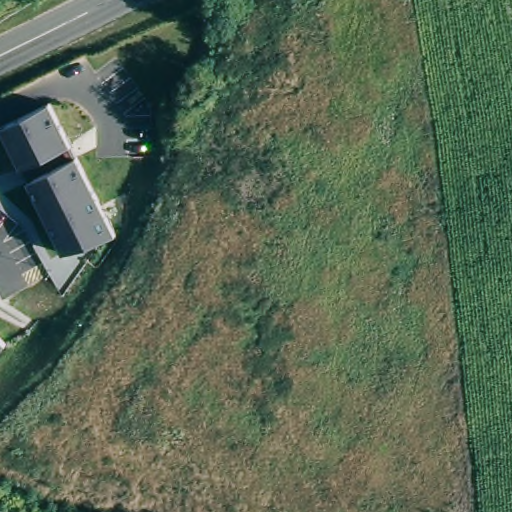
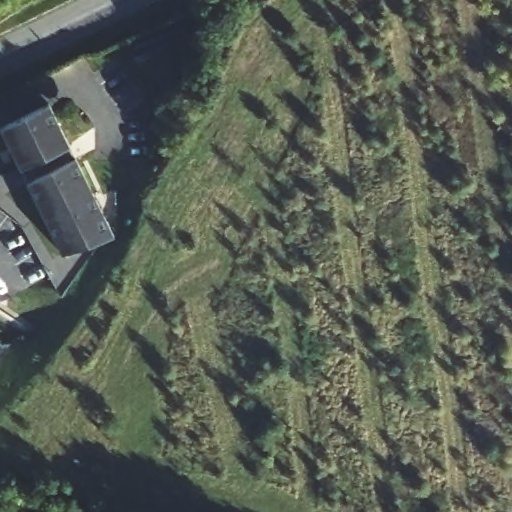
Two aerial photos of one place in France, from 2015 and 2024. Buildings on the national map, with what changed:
unchanged [(113,234),(66,253),(3,121),(49,101),(113,234)]
unchanged [(0,353),(0,345),(4,349),(0,353)]

